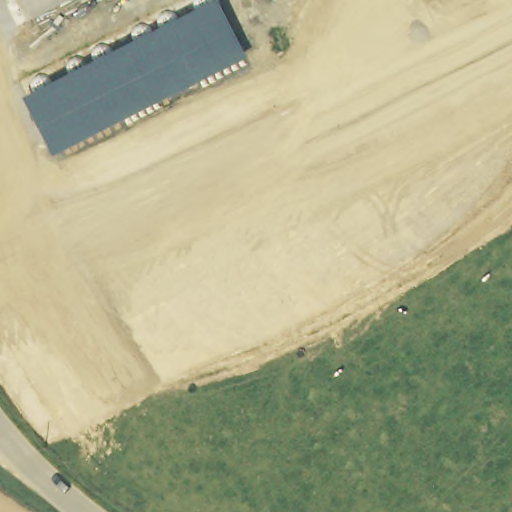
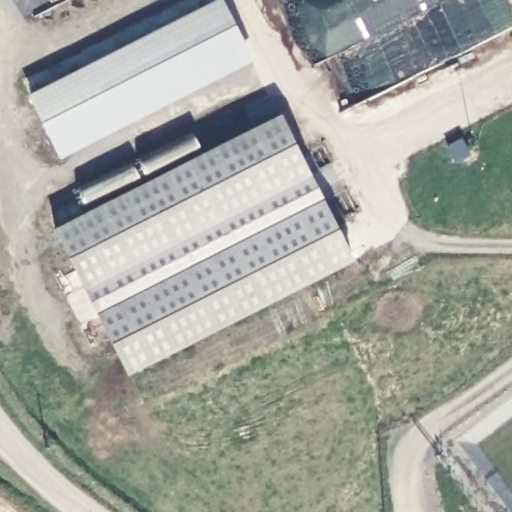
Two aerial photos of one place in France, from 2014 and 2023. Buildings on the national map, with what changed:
unchanged [(58,155),(28,97),(217,0),(222,0),(252,57),(58,155)]
new [(253,128),(244,115),(271,101),(280,115),(353,261),(126,373),(52,228),(253,128)]
new [(465,138),(471,151),(457,159),(450,146),(465,138)]

